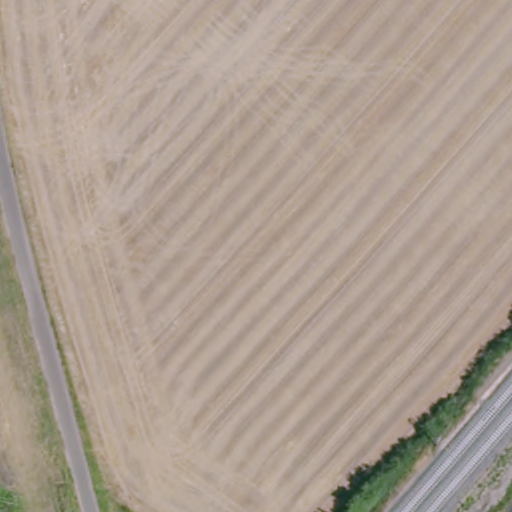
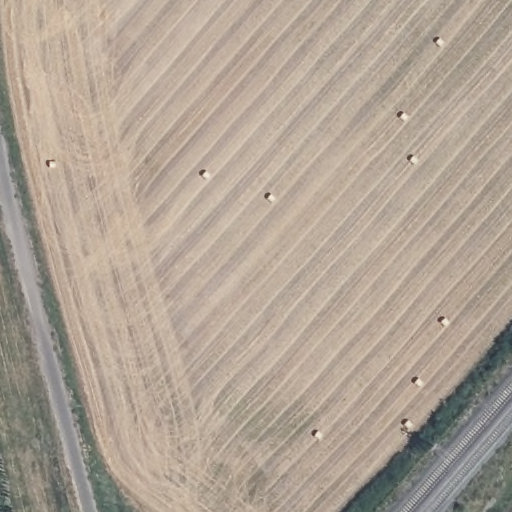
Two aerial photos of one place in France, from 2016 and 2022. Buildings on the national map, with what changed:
[]

